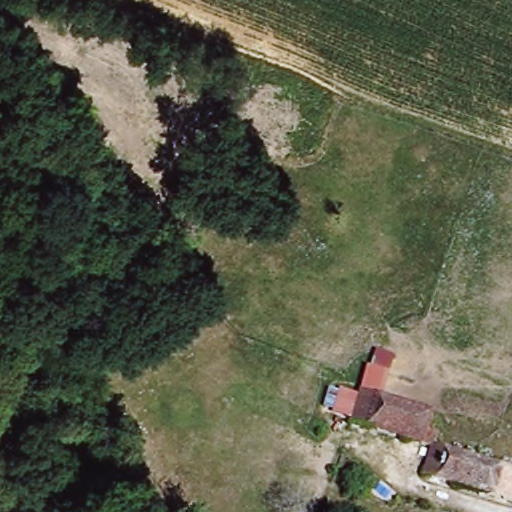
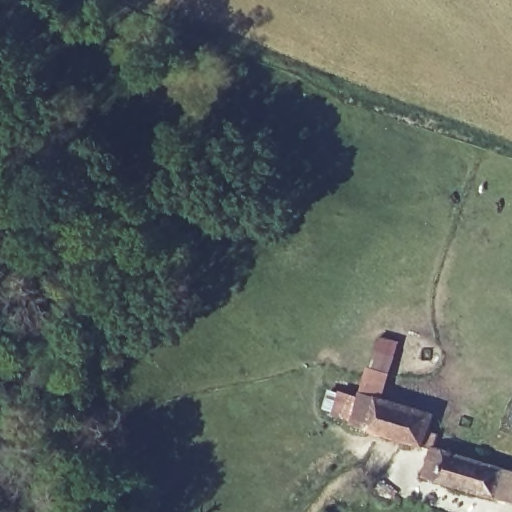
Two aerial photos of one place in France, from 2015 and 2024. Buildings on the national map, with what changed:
unchanged [(431,431),(440,435),(440,444),(470,454),(473,455),(512,468),(512,501),(427,471),(432,449),(370,430),(353,425),(355,418),(329,410),(325,404),(330,387),(338,383),(360,390),(368,361),(375,346),(394,352),(381,398),(436,416),(431,431)]

